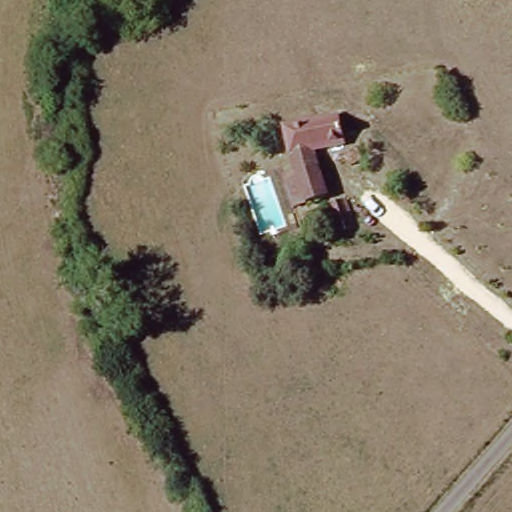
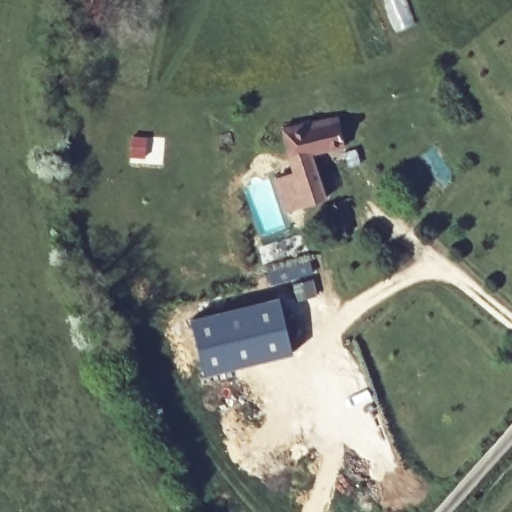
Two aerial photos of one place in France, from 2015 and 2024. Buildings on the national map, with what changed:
unchanged [(296,169),(293,154),(290,155),(285,130),(338,117),(345,147),(322,151),(326,182),(330,202),(288,209),(282,172),(283,171),(296,169)]
unchanged [(365,145),(373,157),(362,165),(353,154),(365,145)]
unchanged [(353,229),(335,233),(330,206),(348,202),(353,229)]
new [(310,259),(318,295),(296,301),(291,282),(268,287),(263,270),(310,259)]
new [(279,294),(292,352),(201,375),(188,316),(279,294)]

